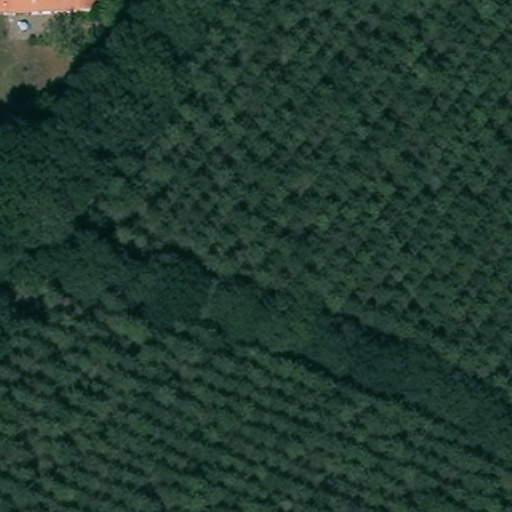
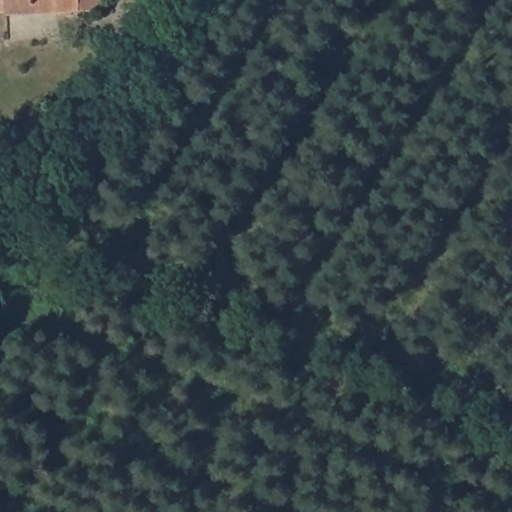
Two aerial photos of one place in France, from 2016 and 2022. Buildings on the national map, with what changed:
unchanged [(0,16),(0,0),(102,0),(103,13),(0,16)]

